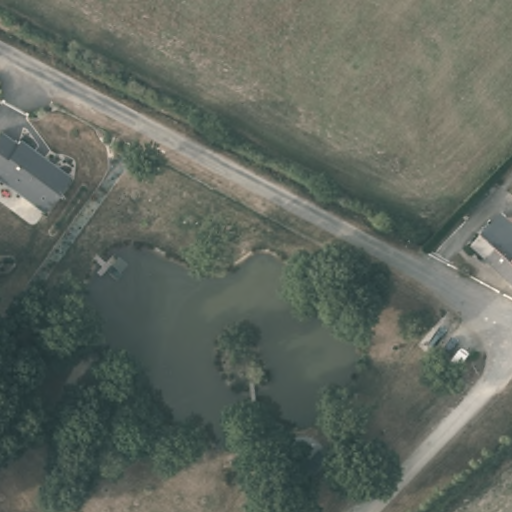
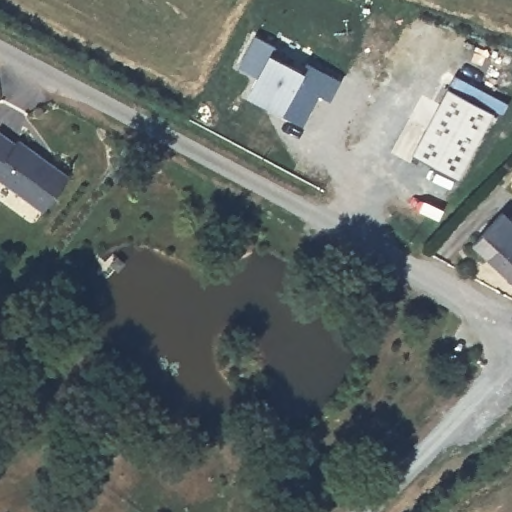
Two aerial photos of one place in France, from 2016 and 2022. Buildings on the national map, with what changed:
new [(331,100),(317,95),(302,125),(281,114),(245,95),(255,77),(237,67),(253,34),(275,46),(271,54),(301,70),(305,61),(340,80),(331,100)]
new [(502,115),(493,110),(457,177),(433,166),(435,165),(411,153),(446,86),(453,74),(507,102),(502,115)]
unchanged [(16,142),(19,137),(69,175),(45,209),(0,176),(0,131),(16,142)]
unchanged [(502,212),(506,216),(512,216),(512,290),(468,248),(502,212)]
unchanged [(295,497),(286,487),(313,460),(323,468),(295,497)]

